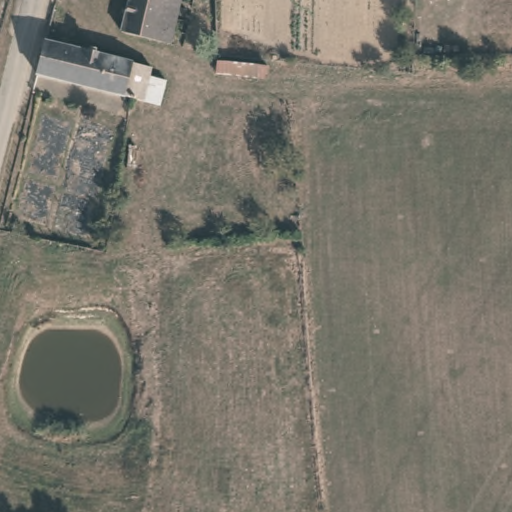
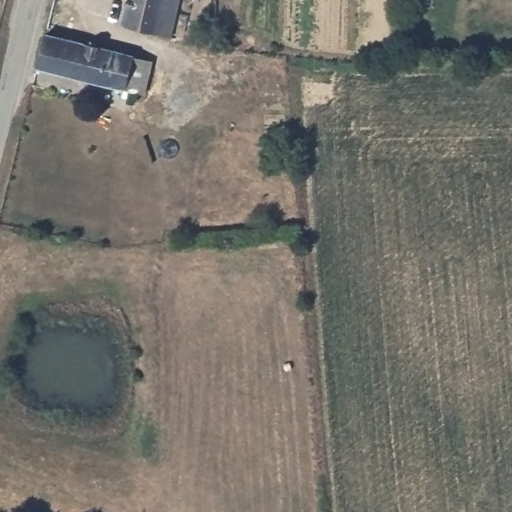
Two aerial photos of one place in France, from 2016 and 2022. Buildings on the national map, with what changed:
unchanged [(179,0),(171,39),(119,25),(125,0),(179,0)]
unchanged [(144,96),(130,93),(34,69),(42,34),(152,63),(150,73),(144,96)]

